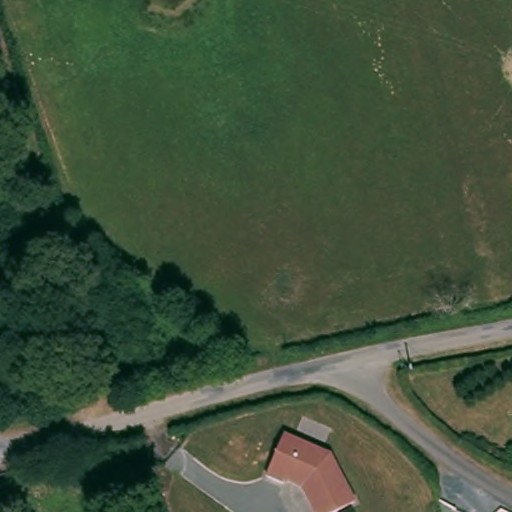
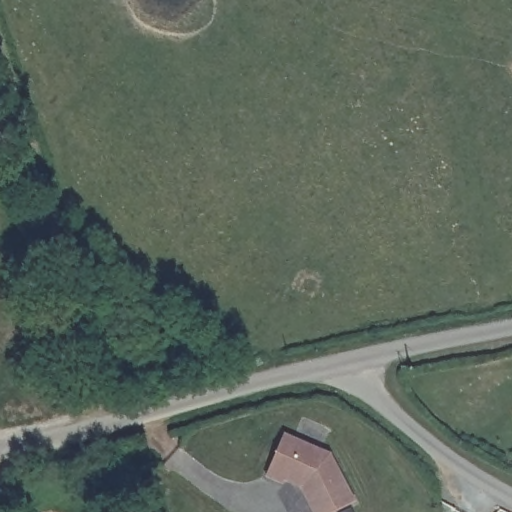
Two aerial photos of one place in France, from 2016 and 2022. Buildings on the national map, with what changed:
unchanged [(355,508),(346,512),(313,512),(303,488),(264,475),(283,435),(328,454),(355,508)]

